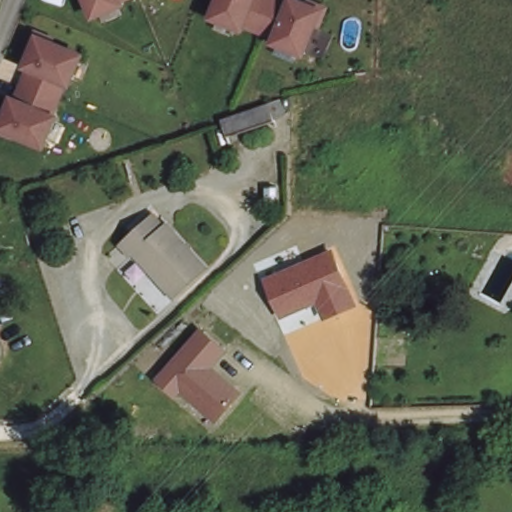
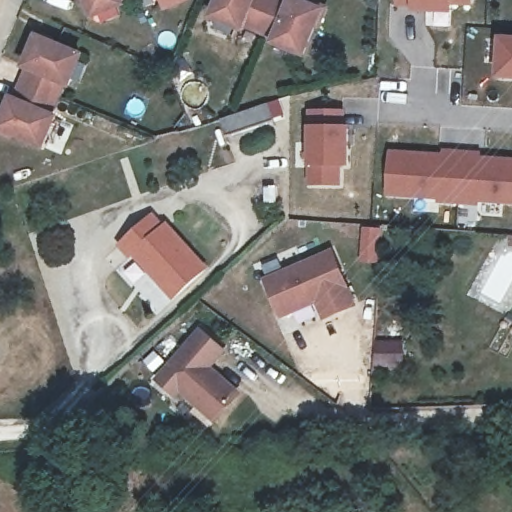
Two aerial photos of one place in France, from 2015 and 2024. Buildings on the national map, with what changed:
unchanged [(92,12),(86,0),(120,0),(92,12)]
unchanged [(265,26),(264,30),(248,23),(246,27),(216,16),(222,0),(275,0),(265,26)]
unchanged [(294,1),(294,0),(306,0),(326,7),(309,52),(292,46),(279,41),(281,36),(264,30),(265,26),(275,0),(293,0),(294,1)]
new [(472,7),(454,7),(454,14),(412,12),(396,7),(396,0),(472,0),(472,7)]
new [(495,78),(497,35),(512,36),(512,80),(495,78)]
unchanged [(85,56),(72,86),(67,84),(61,99),(29,86),(26,85),(33,69),(29,67),(41,37),(85,56)]
unchanged [(29,86),(61,99),(55,115),(59,117),(47,147),(2,129),(15,99),(20,101),(26,85),(29,86)]
unchanged [(276,117),(228,134),(223,119),(227,117),(271,103),(276,117)]
new [(349,127),(349,167),(341,167),(342,187),(306,187),(307,110),(346,110),(349,127)]
new [(480,204),(479,207),(436,204),(436,200),(386,196),(389,149),(440,152),(441,148),(481,151),(480,157),(512,158),(512,206),(480,204)]
unchanged [(205,267),(172,302),(137,262),(131,267),(116,250),(150,216),(162,229),(167,224),(205,267)]
unchanged [(332,249),(355,307),(322,321),(315,305),(280,317),(259,278),(332,249)]
unchanged [(212,367),(241,393),(216,425),(179,392),(173,398),(153,378),(199,328),(225,352),(212,367)]

